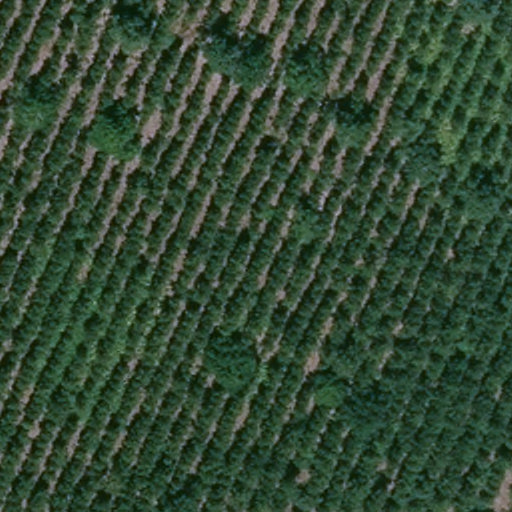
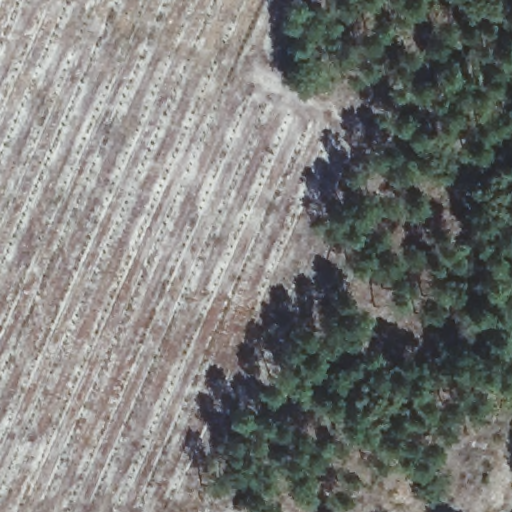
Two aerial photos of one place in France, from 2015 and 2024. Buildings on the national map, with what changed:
[]

